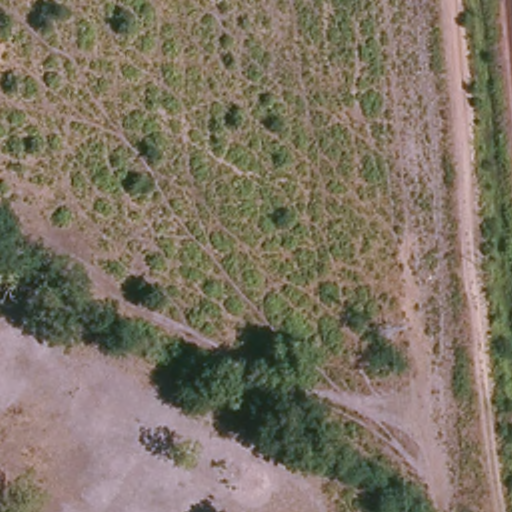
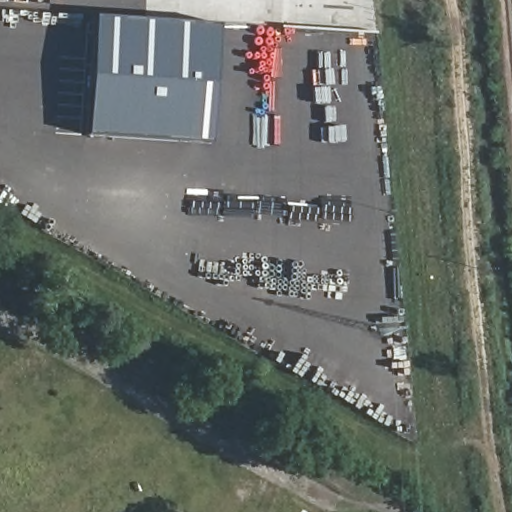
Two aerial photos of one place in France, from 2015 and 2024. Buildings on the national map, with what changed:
new [(95,19),(219,25),(212,140),(89,133),(92,75),(95,19)]

